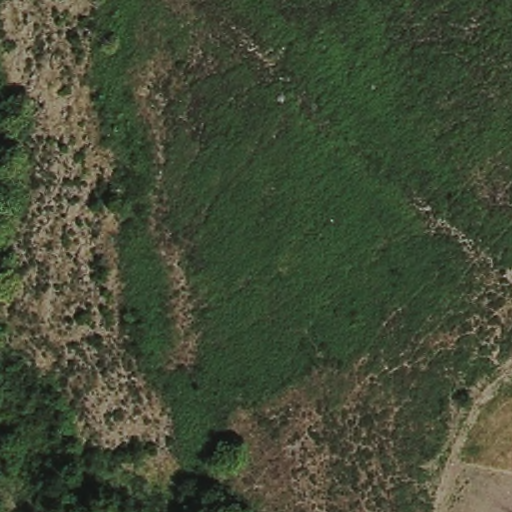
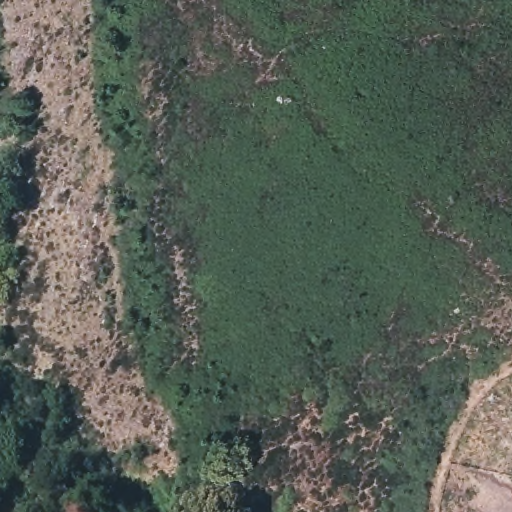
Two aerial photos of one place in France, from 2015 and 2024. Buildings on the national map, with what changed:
[]

